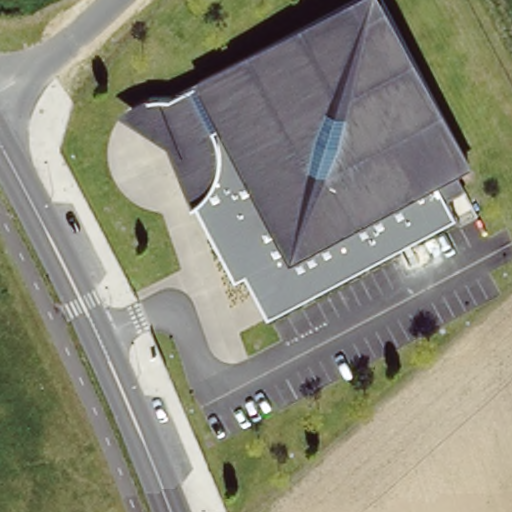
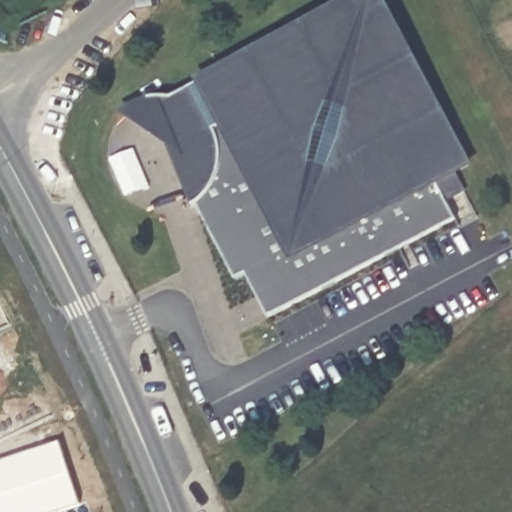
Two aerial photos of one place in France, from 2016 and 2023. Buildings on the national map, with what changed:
unchanged [(292,23),(333,0),(388,0),(463,136),(379,190),(293,26),(292,23)]
unchanged [(293,26),(379,190),(247,273),(246,269),(234,276),(193,204),(174,168),(173,154),(169,145),(165,148),(155,130),(162,126),(153,111),(146,99),(177,88),(202,74),(202,73),(292,23),(293,26)]
unchanged [(262,299),(247,273),(379,190),(463,136),(465,136),(472,150),(451,163),(460,179),(442,190),(453,210),(274,310),(270,313),(262,299)]
new [(80,504),(54,512),(0,512),(0,463),(61,443),(80,504)]

